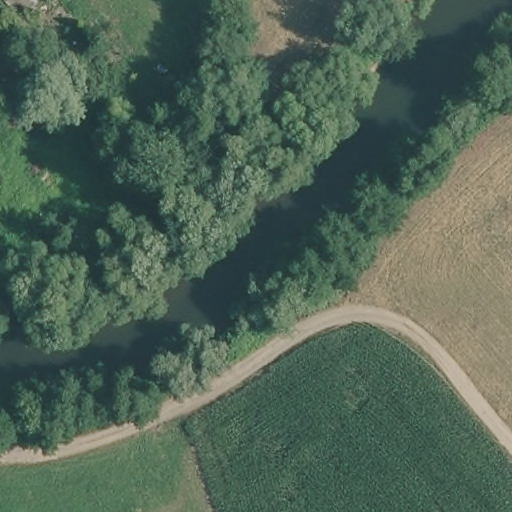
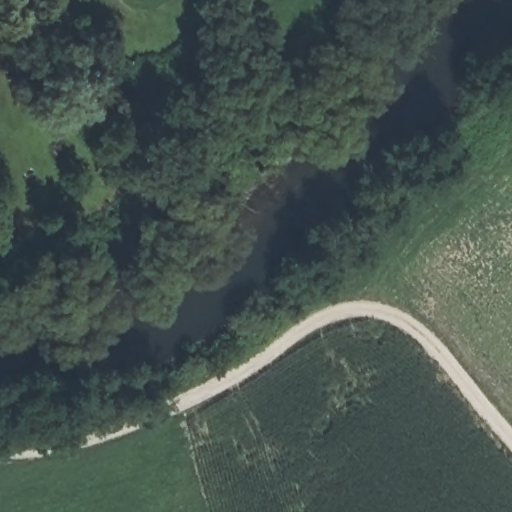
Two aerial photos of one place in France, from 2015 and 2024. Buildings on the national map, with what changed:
unchanged [(5,0),(44,0),(24,19),(5,0)]
unchanged [(82,21),(110,48),(93,66),(64,40),(82,21)]

